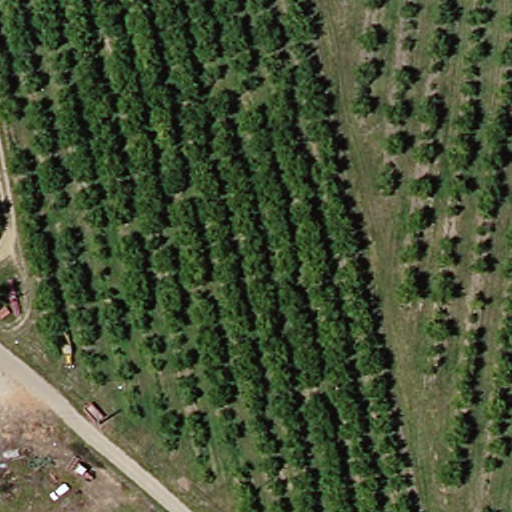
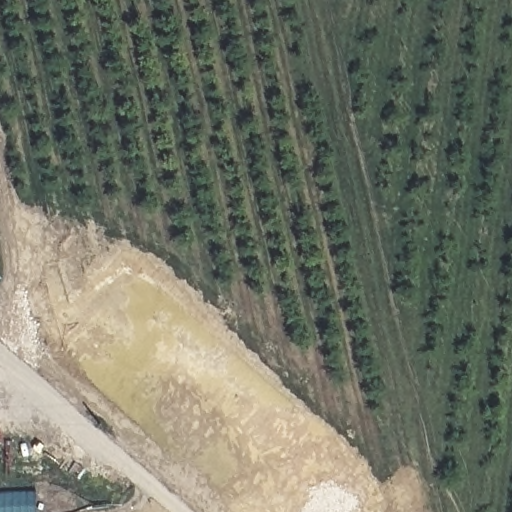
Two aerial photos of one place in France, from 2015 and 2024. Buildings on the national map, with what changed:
new [(35,492),(37,512),(0,512),(0,495),(35,492)]

